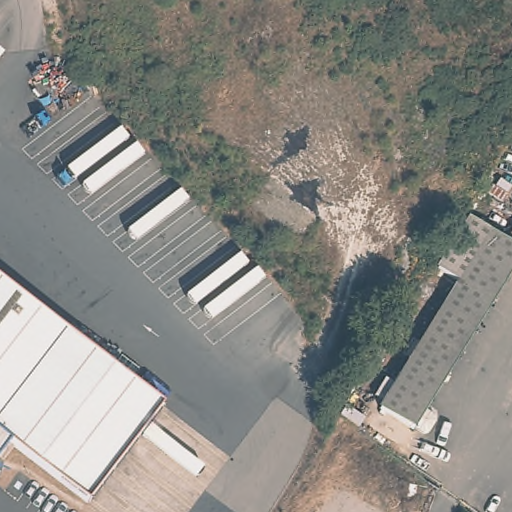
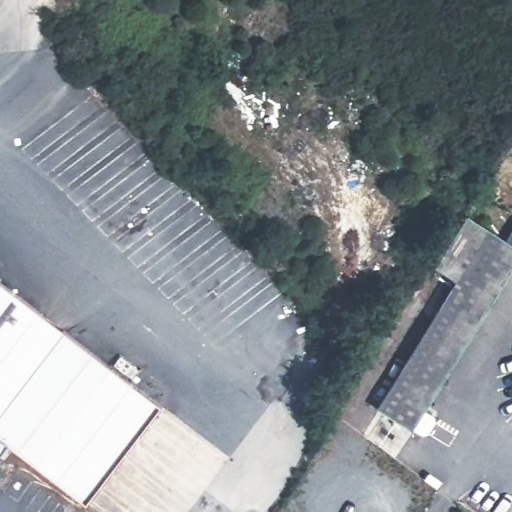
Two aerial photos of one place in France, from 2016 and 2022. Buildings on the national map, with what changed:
unchanged [(461,282),(433,266),(465,216),(493,232),(461,282)]
unchanged [(493,232),(497,226),(509,234),(512,236),(512,275),(417,424),(384,401),(461,282),(493,232)]
unchanged [(512,230),(512,236),(509,234),(512,230)]
unchanged [(164,404),(93,502),(9,441),(0,452),(0,278),(164,404)]
unchanged [(384,401),(417,424),(400,451),(369,425),(384,401)]

